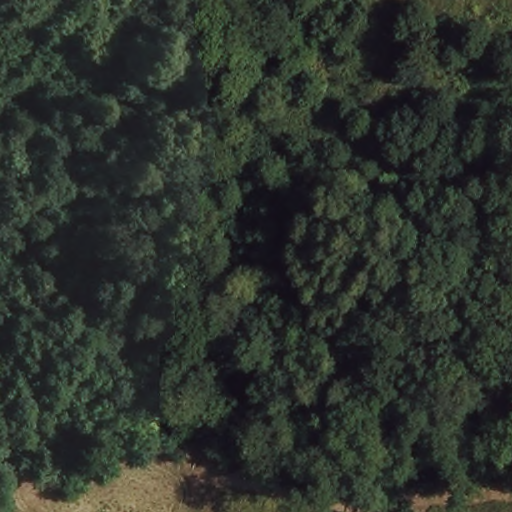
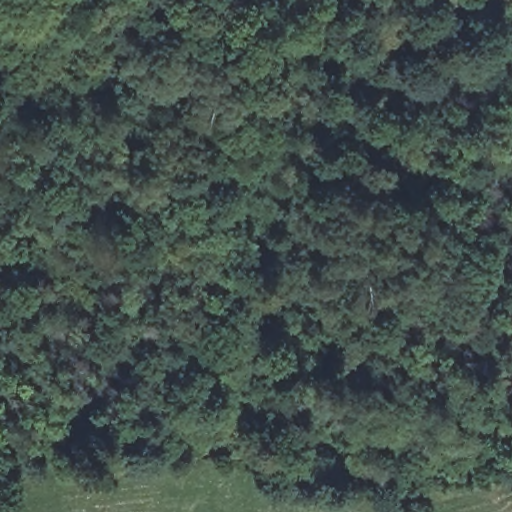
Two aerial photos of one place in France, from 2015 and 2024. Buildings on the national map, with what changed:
unchanged [(512,402),(512,407),(510,406),(512,402)]

